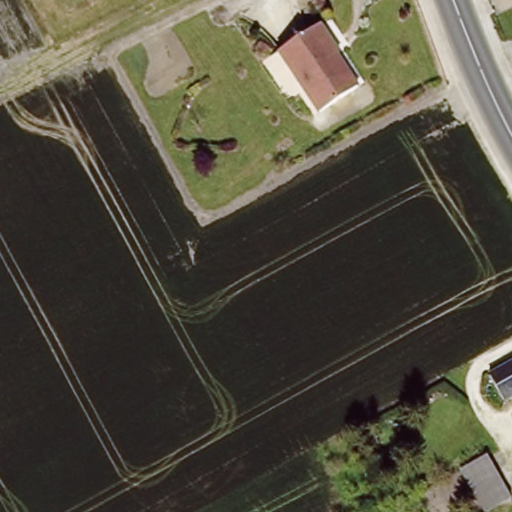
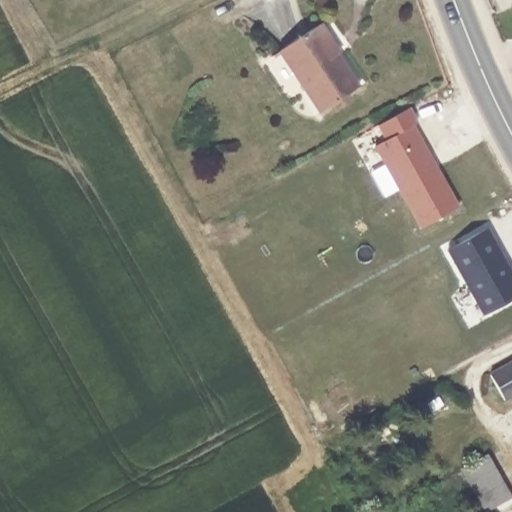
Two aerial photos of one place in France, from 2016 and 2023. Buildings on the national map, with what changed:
unchanged [(489,0),(500,0),(491,4),(489,0)]
unchanged [(339,46),(333,50),(362,89),(328,114),(284,57),(324,26),(339,46)]
new [(415,123),(412,126),(457,207),(417,228),(373,144),(385,140),(375,125),(407,108),(415,123)]
new [(487,229),(512,276),(512,298),(482,315),(450,250),(487,229)]
unchanged [(485,376),(512,361),(512,397),(503,402),(485,376)]
unchanged [(512,498),(484,512),(480,512),(458,469),(487,452),(512,498)]

